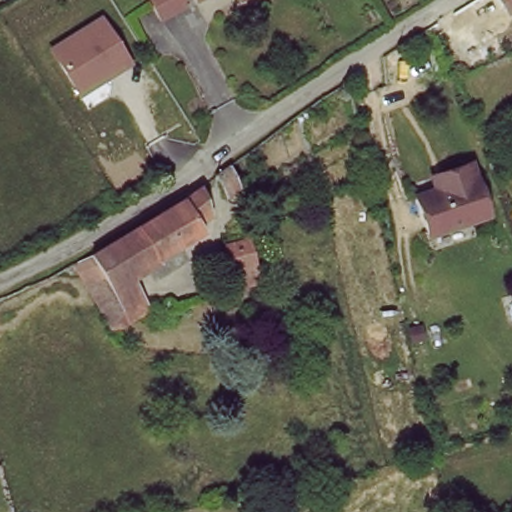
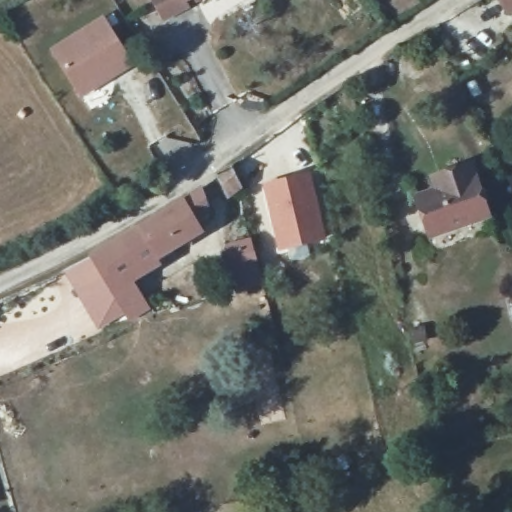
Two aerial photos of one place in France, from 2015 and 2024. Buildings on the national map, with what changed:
unchanged [(188,1),(164,14),(157,0),(188,0),(188,1)]
unchanged [(505,0),(512,0),(512,7),(510,8),(505,0)]
unchanged [(105,16),(137,67),(82,100),(50,49),(105,16)]
unchanged [(498,215),(440,235),(427,198),(449,191),(444,178),(461,172),(480,165),(498,215)]
unchanged [(230,195),(222,177),(227,174),(235,168),(244,187),(230,195)]
new [(312,174),(327,240),(281,252),(264,183),(312,174)]
unchanged [(203,185),(217,216),(201,225),(205,234),(138,282),(156,313),(116,338),(107,320),(123,312),(88,257),(203,185)]
unchanged [(231,244),(252,237),(254,247),(264,282),(252,287),(244,291),(231,244)]

